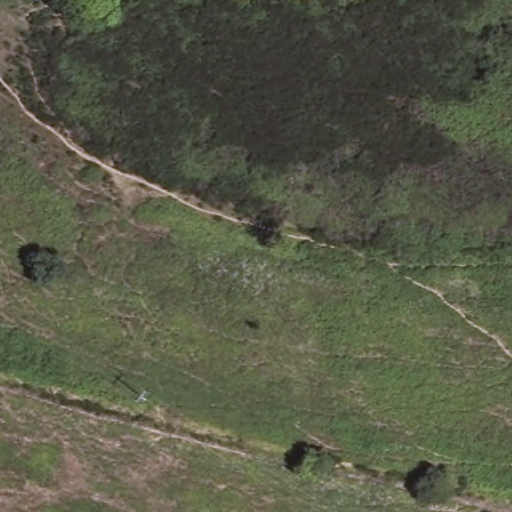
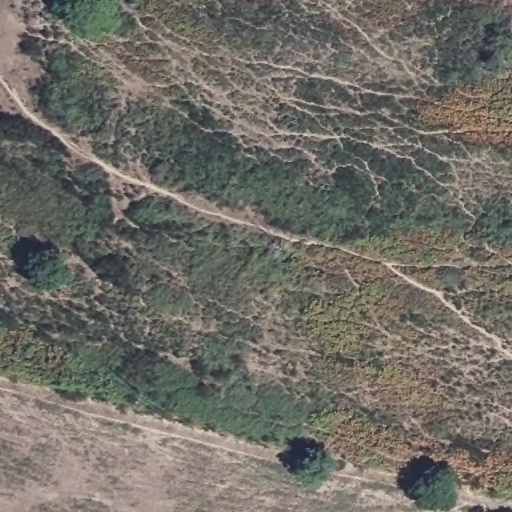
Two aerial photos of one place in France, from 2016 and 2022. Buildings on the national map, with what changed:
[]

